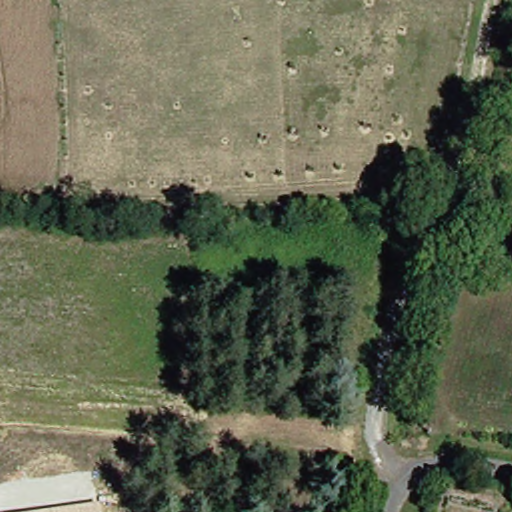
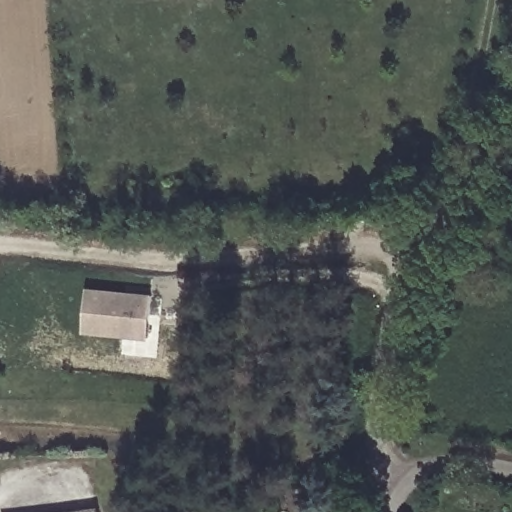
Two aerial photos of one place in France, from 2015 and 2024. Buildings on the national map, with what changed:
new [(149,295),(144,337),(80,330),(85,288),(149,295)]
unchanged [(65,512),(98,507),(99,512),(65,512)]

